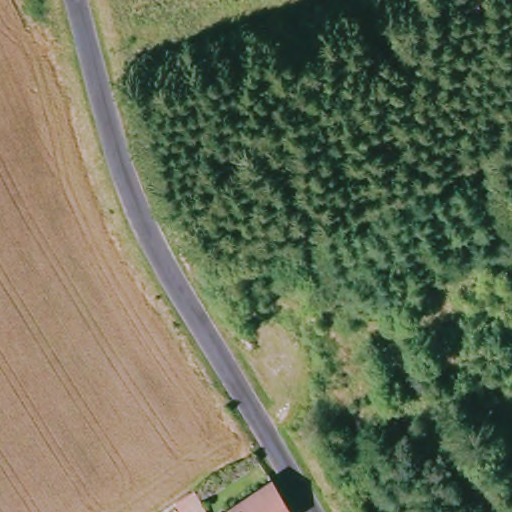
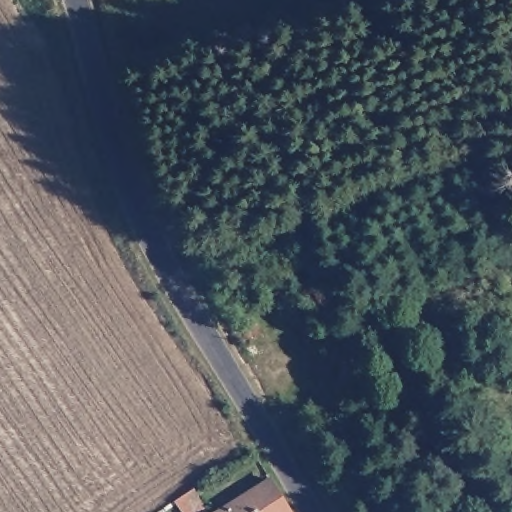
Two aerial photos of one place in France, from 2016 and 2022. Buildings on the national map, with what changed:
unchanged [(289,512),(213,512),(267,477),(289,512)]
unchanged [(208,512),(180,512),(173,499),(190,487),(208,512)]

